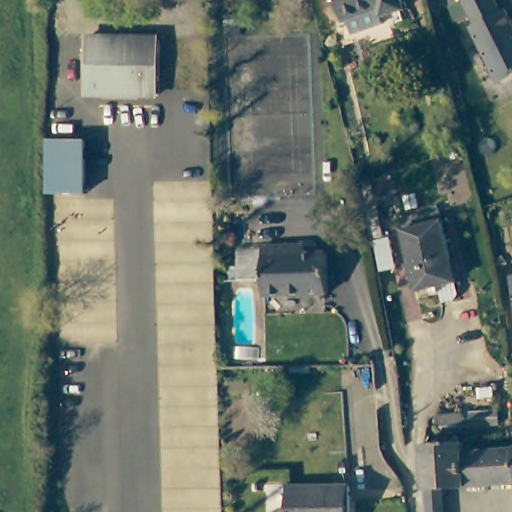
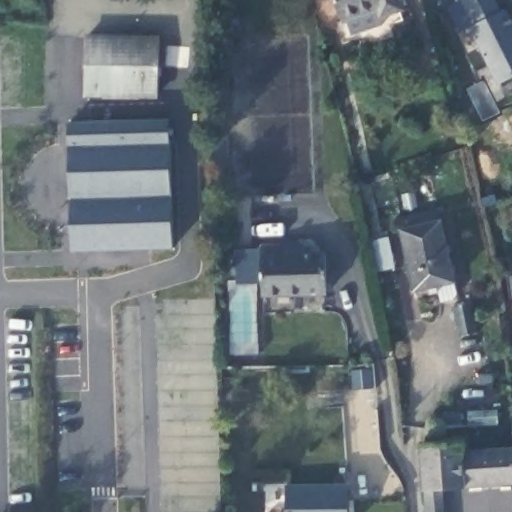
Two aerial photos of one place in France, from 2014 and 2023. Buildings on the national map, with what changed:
unchanged [(380,5),(344,17),(339,0),(404,0),(406,7),(382,15),(380,5)]
unchanged [(489,7),(493,5),(512,40),(512,67),(488,80),(458,24),(463,21),(451,0),(485,0),(489,7)]
unchanged [(83,95),(88,40),(161,45),(159,102),(83,95)]
new [(174,249),(71,252),(68,122),(169,119),(174,249)]
demolished [(47,191),(47,139),(80,138),(81,192),(47,191)]
unchanged [(441,209),(458,283),(417,291),(404,217),(441,209)]
new [(326,295),(262,296),(264,283),(236,283),(236,250),(259,250),(262,252),(325,251),(326,295)]
demolished [(265,266),(304,264),(304,254),(315,253),(329,252),(331,295),(323,295),(268,298),(265,266)]
unchanged [(512,272),(512,329),(501,274),(512,272)]
unchanged [(432,427),(430,410),(453,409),(455,425),(432,427)]
unchanged [(510,417),(512,417),(512,441),(510,441),(510,417)]
unchanged [(471,444),(512,441),(512,478),(448,482),(428,483),(426,436),(470,433),(471,444)]
unchanged [(448,482),(451,512),(430,512),(428,483),(448,482)]
unchanged [(352,486),(365,486),(365,512),(303,512),(302,487),(352,486)]
unchanged [(302,487),(303,512),(282,512),(282,487),(302,487)]

